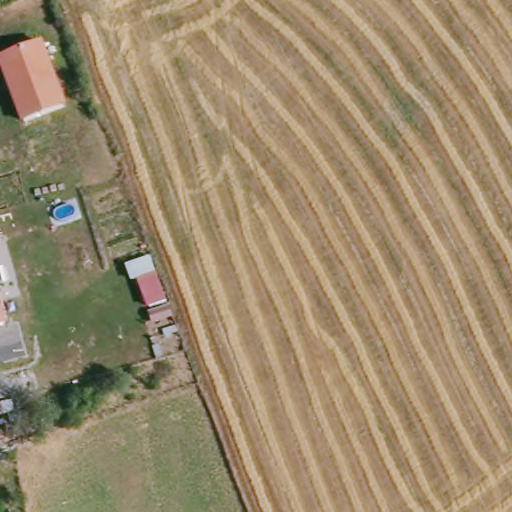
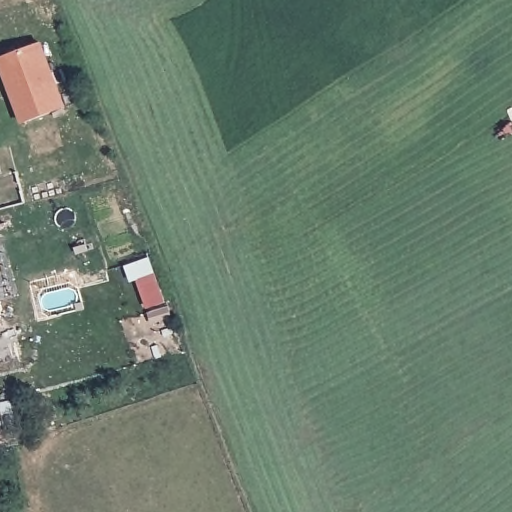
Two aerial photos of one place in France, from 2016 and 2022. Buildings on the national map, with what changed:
unchanged [(0,60),(45,42),(70,108),(22,126),(0,68),(0,60)]
unchanged [(0,328),(0,309),(5,326),(0,328)]

